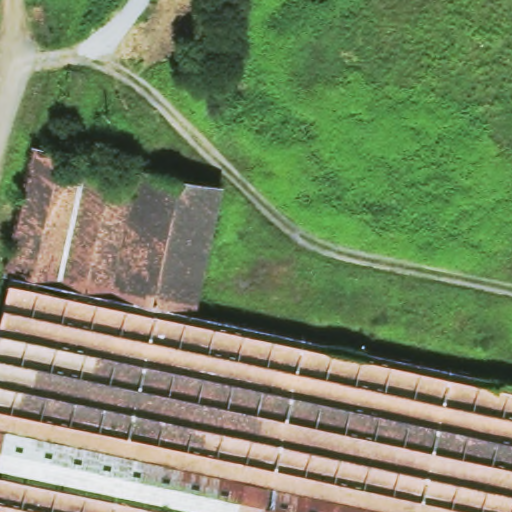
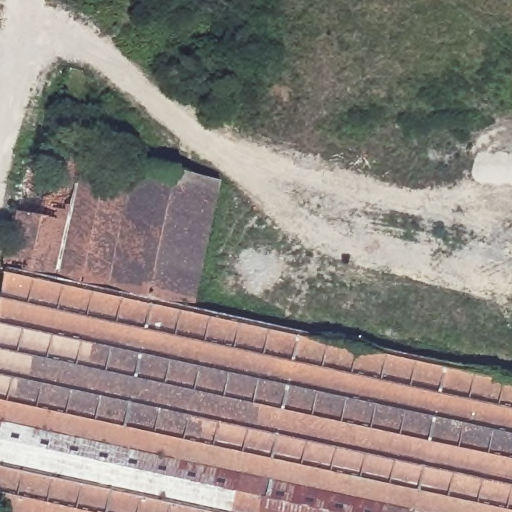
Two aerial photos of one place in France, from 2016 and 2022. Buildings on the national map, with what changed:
unchanged [(225,186),(197,316),(512,383),(512,512),(0,512),(0,322),(37,146),(158,171),(225,186)]

